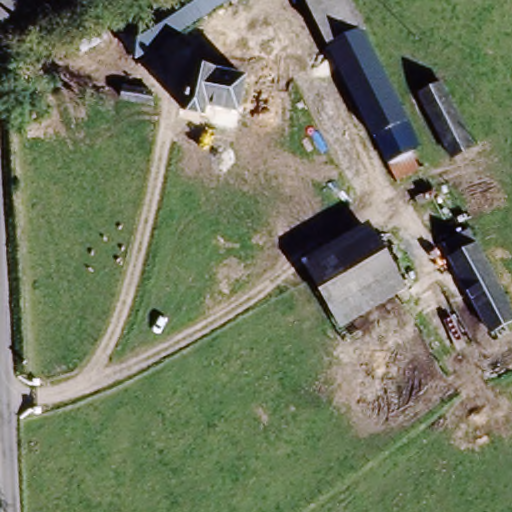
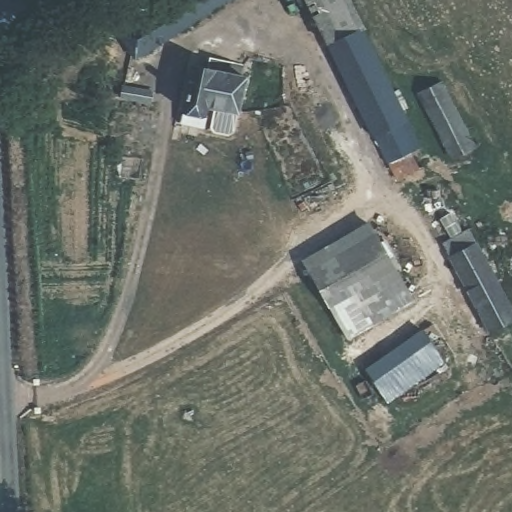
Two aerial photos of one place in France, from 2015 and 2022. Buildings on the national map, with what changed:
unchanged [(157,12),(152,4),(158,0),(174,0),(175,1),(176,0),(229,0),(137,58),(122,34),(157,12)]
unchanged [(385,163),(372,136),(370,138),(302,0),(346,0),(360,30),(358,31),(414,150),(422,166),(393,180),(385,163)]
unchanged [(84,51),(75,36),(100,23),(108,38),(84,51)]
unchanged [(195,61),(248,74),(240,109),(210,102),(208,111),(185,105),(195,61)]
unchanged [(447,158),(420,102),(415,95),(438,84),(470,146),(447,158)]
unchanged [(304,262),(369,224),(377,239),(313,277),(304,262)]
unchanged [(491,332),(445,244),(470,230),(512,310),(512,321),(491,332)]
unchanged [(331,307),(313,277),(377,239),(395,269),(331,307)]
unchanged [(331,307),(395,269),(407,288),(342,327),(331,307)]
new [(421,331),(443,365),(387,404),(365,371),(421,331)]

